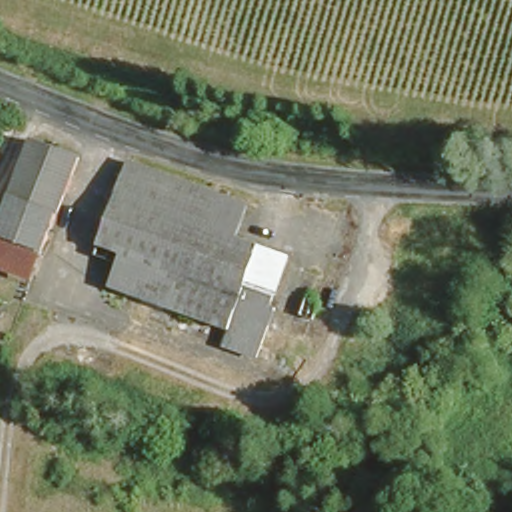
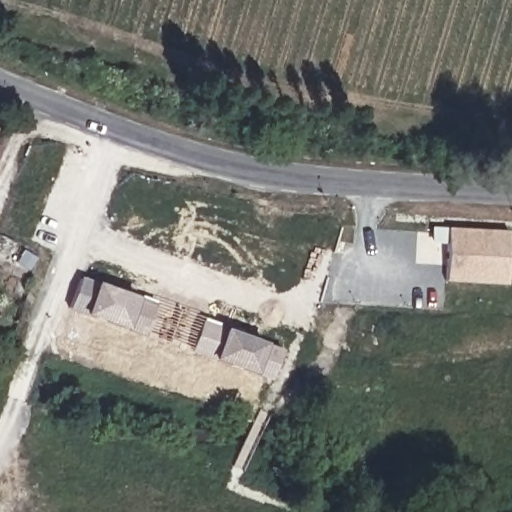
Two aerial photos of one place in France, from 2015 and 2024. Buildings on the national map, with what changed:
demolished [(37,260),(13,253),(0,248),(0,213),(24,149),(70,165),(50,225),(37,260)]
demolished [(210,225),(292,249),(281,285),(249,276),(234,323),(204,314),(217,277),(97,242),(122,166),(218,195),(210,225)]
new [(445,241),(432,239),(433,227),(446,227),(445,241)]
new [(446,227),(507,232),(503,285),(442,280),(446,227)]
demolished [(111,287),(119,260),(94,252),(97,242),(217,277),(204,314),(111,287)]

